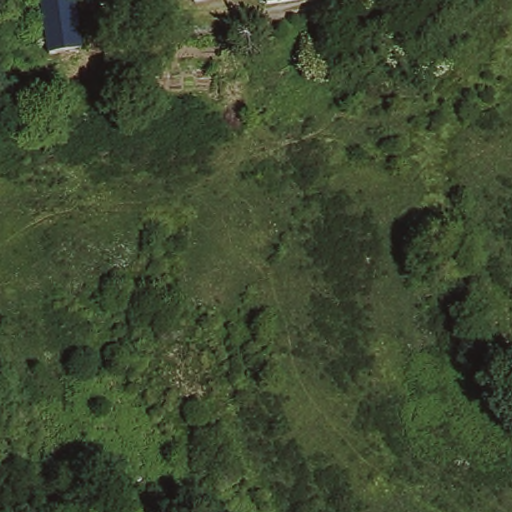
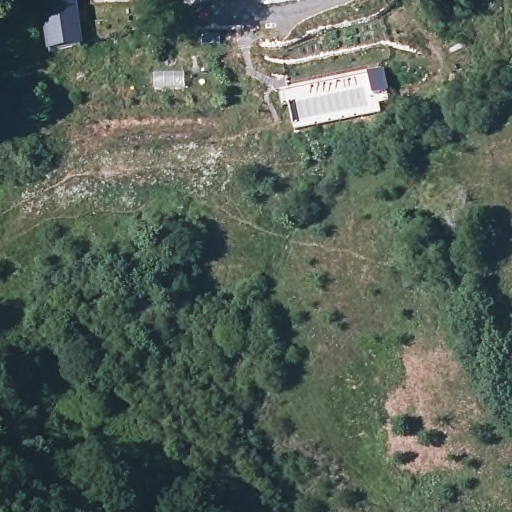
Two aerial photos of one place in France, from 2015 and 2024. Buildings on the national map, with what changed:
unchanged [(83,49),(50,55),(41,10),(40,0),(75,0),(83,49)]
unchanged [(199,3),(199,0),(213,0),(199,3)]
unchanged [(269,7),(267,0),(308,0),(269,7)]
new [(381,69),(389,100),(379,102),(381,112),(296,131),(290,107),(283,108),(279,93),(381,69)]

